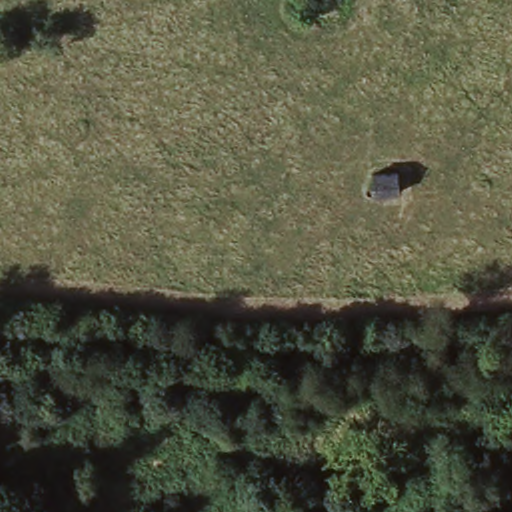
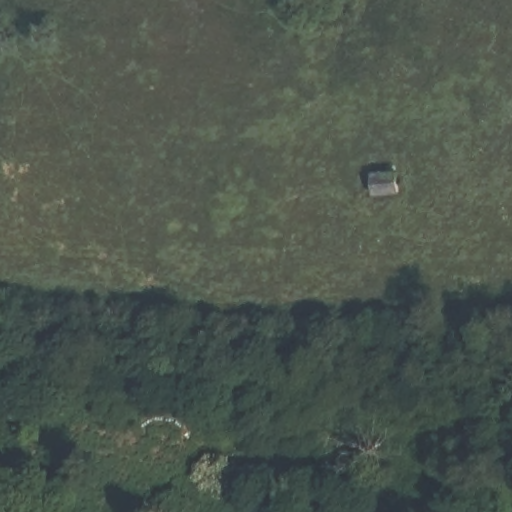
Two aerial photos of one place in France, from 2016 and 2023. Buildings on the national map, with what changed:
unchanged [(400,173),(401,201),(372,205),(369,173),(400,173)]

